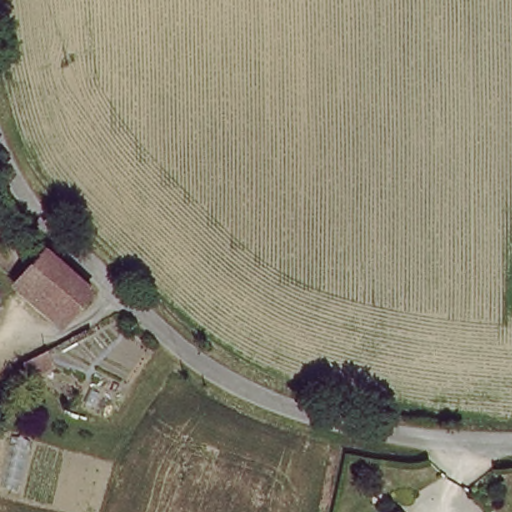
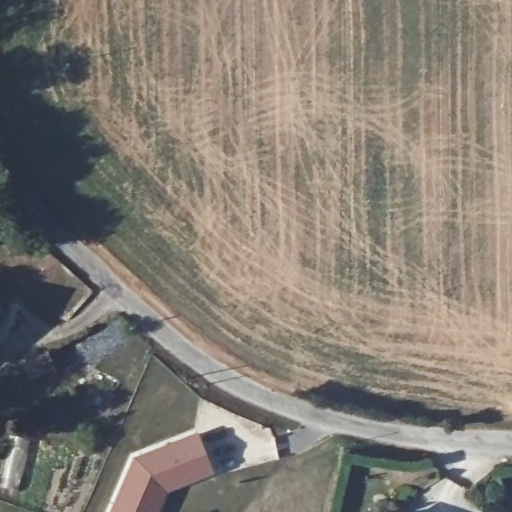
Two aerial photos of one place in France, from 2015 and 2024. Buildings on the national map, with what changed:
unchanged [(15,282),(44,250),(68,273),(39,303),(15,282)]
unchanged [(68,273),(95,298),(65,327),(39,303),(68,273)]
unchanged [(3,295),(0,302),(0,293),(3,295)]
unchanged [(50,351),(58,372),(32,381),(26,362),(50,351)]
new [(194,439),(208,477),(162,495),(156,512),(111,512),(129,465),(194,439)]

